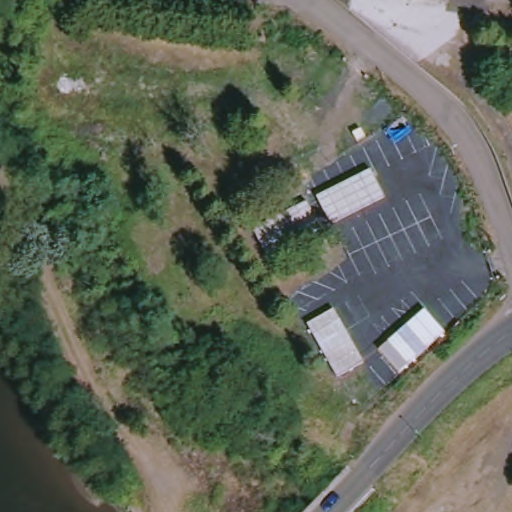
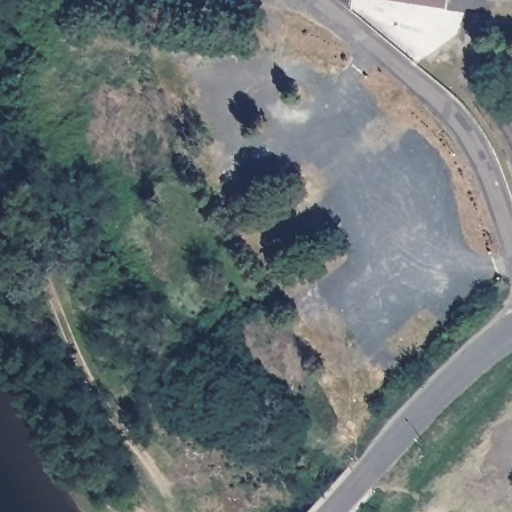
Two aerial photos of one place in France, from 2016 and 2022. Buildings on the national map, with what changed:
unchanged [(31,2),(8,0),(31,0),(31,2)]

